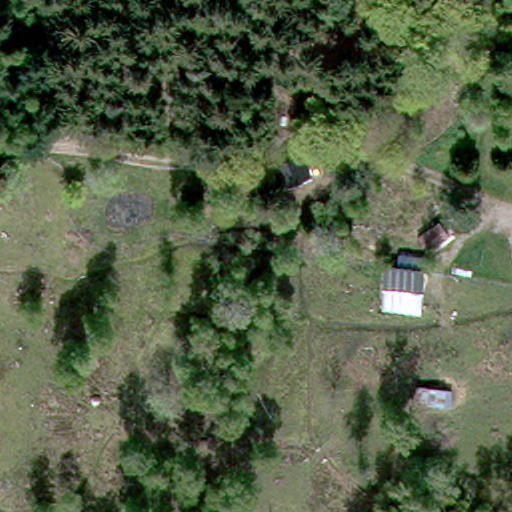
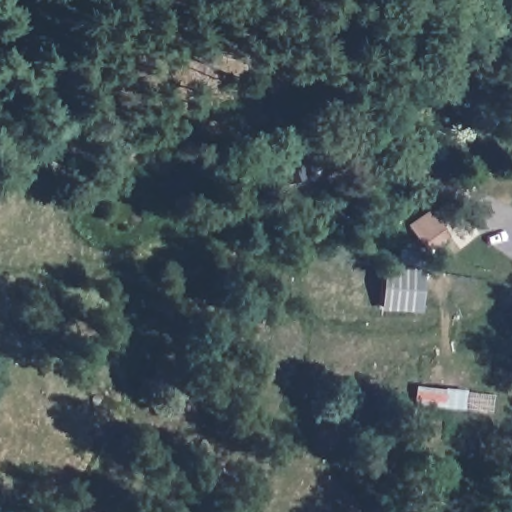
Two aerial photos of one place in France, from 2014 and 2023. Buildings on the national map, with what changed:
unchanged [(308,172),(280,185),(271,165),(301,153),(308,172)]
unchanged [(397,262),(399,249),(431,253),(431,267),(424,267),(422,312),(382,309),(385,262),(397,262)]

